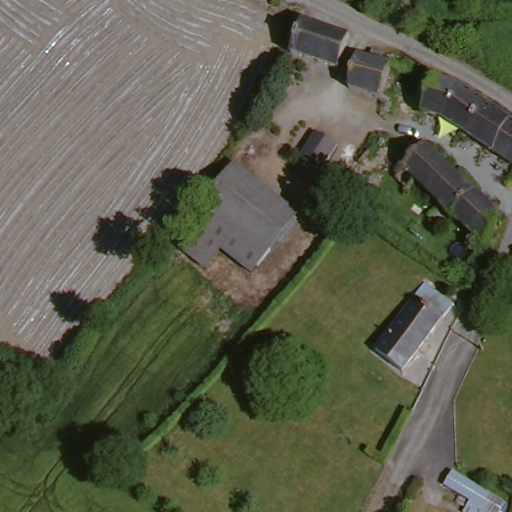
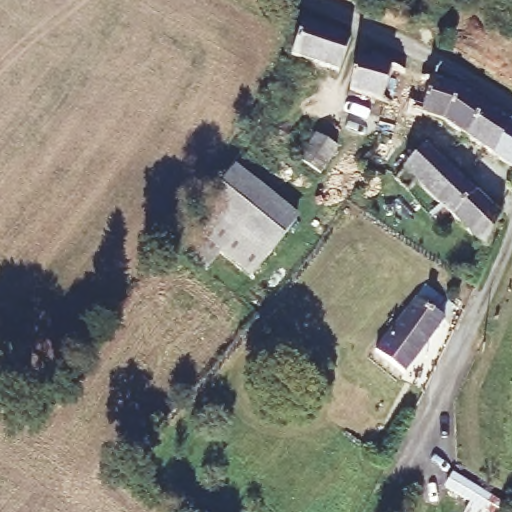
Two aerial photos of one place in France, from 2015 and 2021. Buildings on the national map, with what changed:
unchanged [(359,35),(348,67),(300,49),(312,17),(359,35)]
unchanged [(386,102),(353,93),(363,60),(373,62),(375,53),(387,56),(386,65),(395,67),(386,102)]
unchanged [(462,88),(483,103),(464,134),(443,120),(423,114),(433,80),(462,88)]
unchanged [(511,123),(491,154),(464,134),(483,103),(511,123)]
unchanged [(512,124),(512,170),(491,154),(511,123),(512,124)]
unchanged [(337,147),(321,172),(300,160),(316,135),(337,147)]
unchanged [(450,166),(481,196),(458,219),(446,208),(422,184),(414,194),(398,180),(410,169),(431,148),(450,166)]
unchanged [(297,221),(254,277),(191,227),(235,172),(297,221)]
unchanged [(502,217),(490,250),(458,219),(481,196),(502,217)]
unchanged [(413,298),(422,285),(452,305),(443,319),(442,320),(412,365),(406,373),(376,355),(413,298)]
unchanged [(497,512),(480,512),(442,488),(450,476),(500,506),(497,512)]

